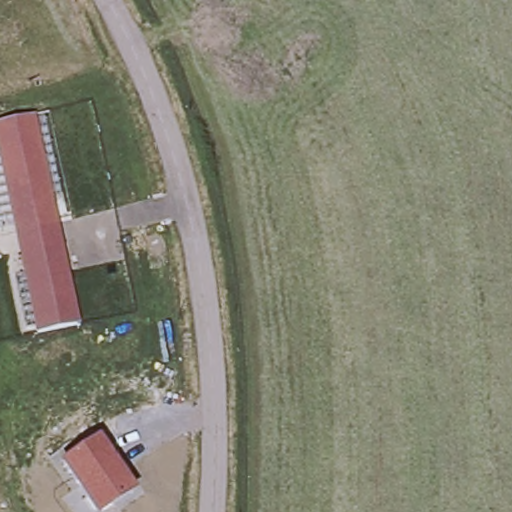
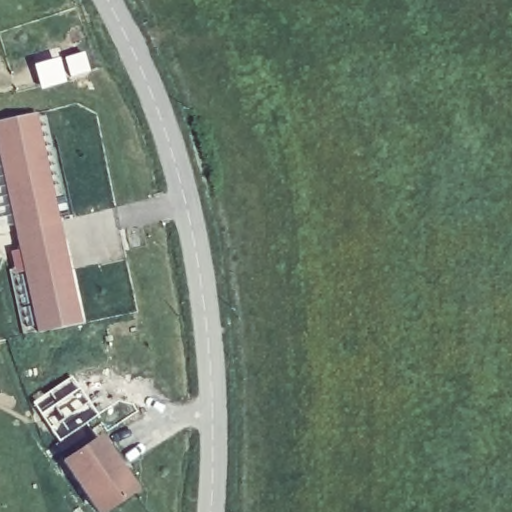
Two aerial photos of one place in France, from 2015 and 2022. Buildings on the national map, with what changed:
unchanged [(0,162),(0,120),(35,112),(80,323),(37,335),(0,162)]
unchanged [(100,433),(136,486),(98,512),(97,512),(62,460),(100,433)]

